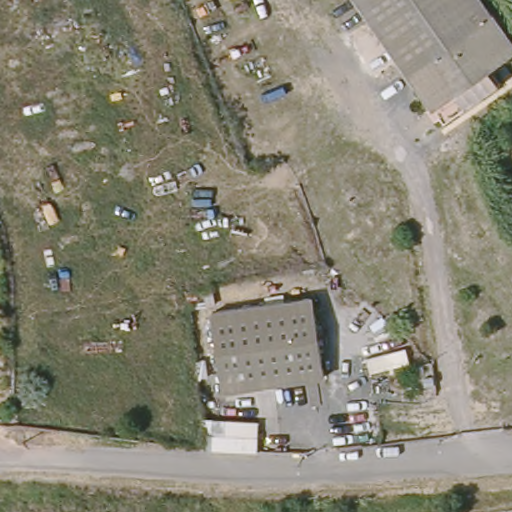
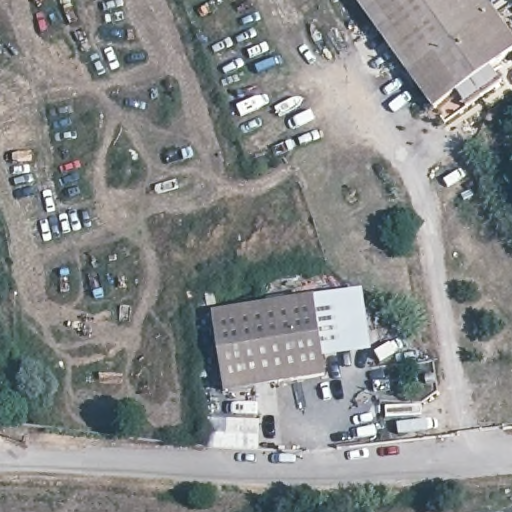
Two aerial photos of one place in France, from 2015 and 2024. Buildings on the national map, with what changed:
unchanged [(357,0),(486,0),(495,13),(407,75),(357,0)]
unchanged [(512,58),(433,111),(407,75),(495,13),(512,37),(512,58)]
new [(372,352),(326,358),(317,295),(363,290),(372,352)]
unchanged [(328,374),(228,388),(216,307),(317,292),(328,374)]
unchanged [(203,444),(198,419),(256,420),(257,445),(203,444)]

